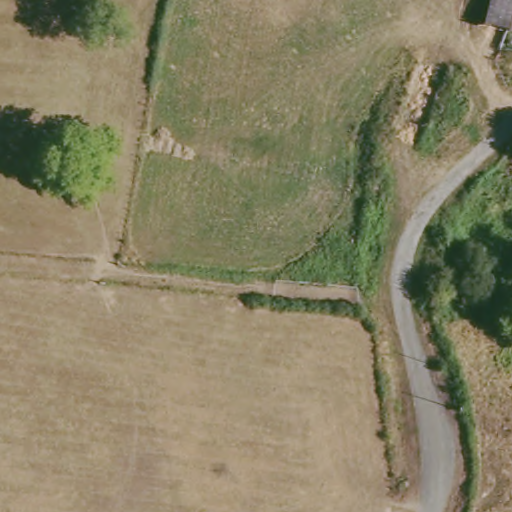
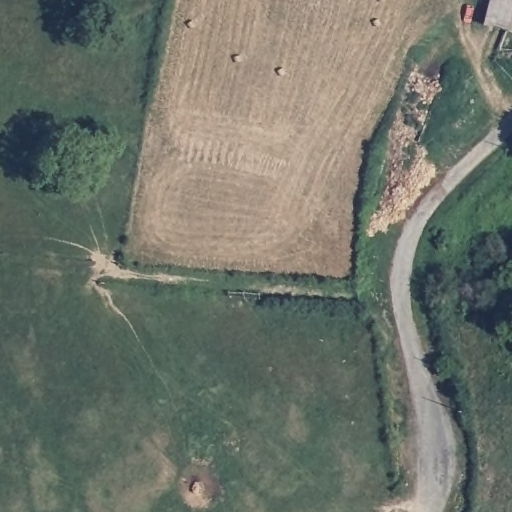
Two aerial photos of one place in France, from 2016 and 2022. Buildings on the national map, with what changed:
unchanged [(491,0),(512,0),(512,26),(486,20),(491,0)]

